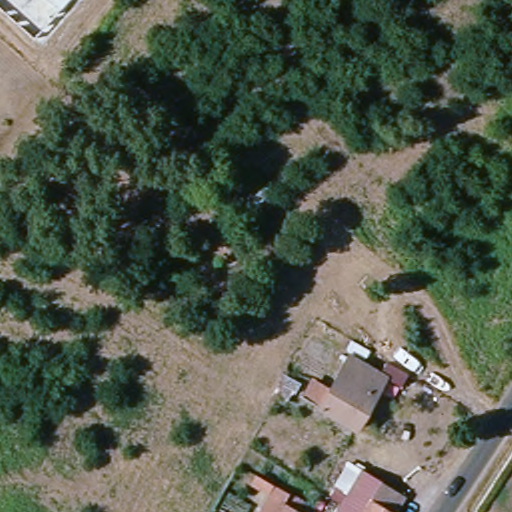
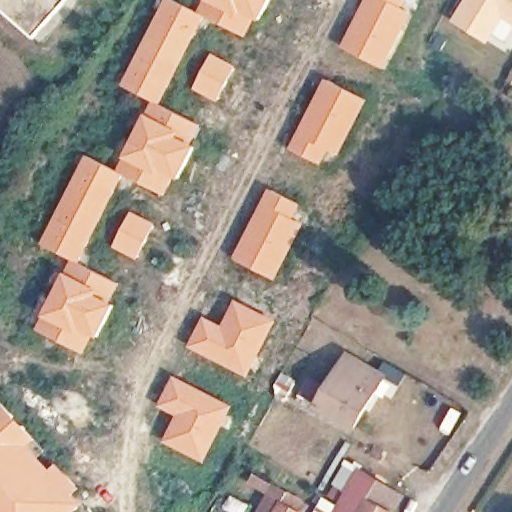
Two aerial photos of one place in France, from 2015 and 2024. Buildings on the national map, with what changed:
new [(35,35),(0,4),(0,0),(69,0),(35,35)]
new [(200,13),(206,0),(270,0),(260,20),(255,16),(245,36),(205,16),(200,13)]
new [(399,6),(410,11),(381,67),(345,49),(370,0),(402,0),(399,6)]
new [(504,20),(488,45),(470,33),(473,28),(458,19),(468,0),(512,0),(512,25),(504,20)]
new [(195,86),(211,55),(235,69),(220,100),(195,86)]
new [(329,80),(365,99),(336,155),(325,149),(318,164),(293,150),(329,80)]
new [(119,171),(155,102),(200,125),(190,145),(195,147),(179,178),(174,175),(165,195),(124,174),(119,171)]
new [(298,204),(291,217),(301,223),(273,278),(237,260),(273,190),(298,204)]
new [(115,245),(131,214),(155,226),(139,257),(115,245)]
new [(119,283),(109,302),(115,305),(99,336),(94,334),(84,353),(39,330),(74,260),(119,283)]
new [(206,321),(225,331),(221,337),(238,305),(272,322),(247,372),(194,345),(203,328),(206,321)]
unchanged [(329,391),(350,357),(385,378),(355,429),(320,407),(320,404),(305,395),(312,382),(329,391)]
unchanged [(272,397),(284,376),(296,385),(285,404),(274,397),(272,397)]
new [(229,408),(204,458),(169,440),(185,407),(167,398),(176,381),(229,408)]
new [(182,414),(164,405),(167,398),(185,407),(182,414)]
new [(7,422),(4,426),(13,436),(16,432),(24,426),(46,450),(36,460),(25,449),(79,507),(74,512),(0,512),(0,400),(15,416),(7,422)]
new [(58,463),(80,487),(70,497),(47,473),(58,463)]
unchanged [(360,471),(379,483),(405,499),(397,512),(360,512),(342,501),(351,485),(360,471)]
unchanged [(299,512),(265,512),(273,498),(299,512)]
unchanged [(360,512),(335,512),(342,501),(360,512)]

